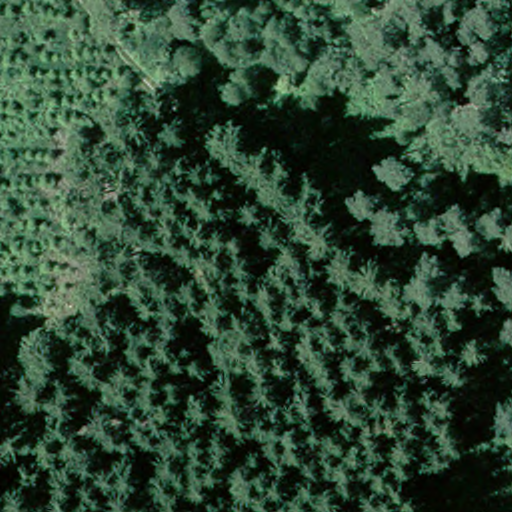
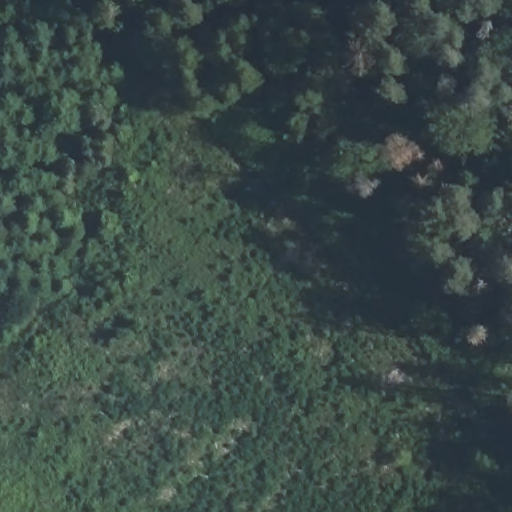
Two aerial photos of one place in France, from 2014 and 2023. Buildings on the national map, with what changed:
[]

